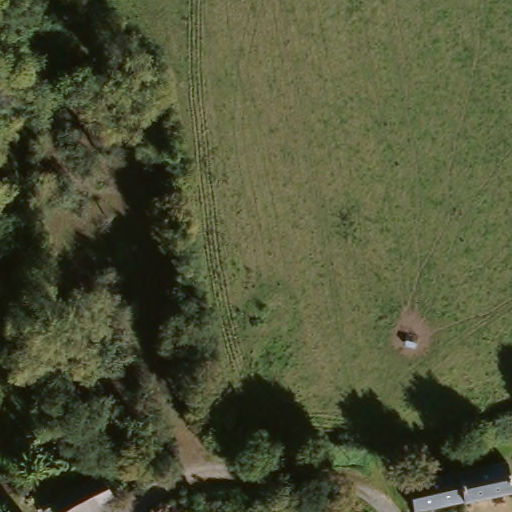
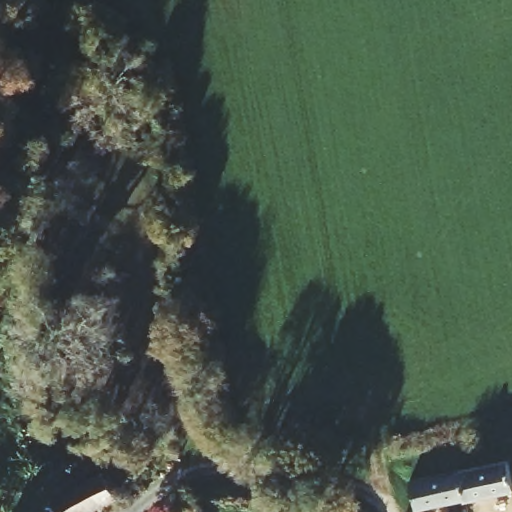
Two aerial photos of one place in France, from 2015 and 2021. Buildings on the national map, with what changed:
unchanged [(509,489),(411,505),(407,479),(506,459),(509,489)]
unchanged [(117,505),(101,512),(41,512),(41,511),(103,484),(117,505)]

